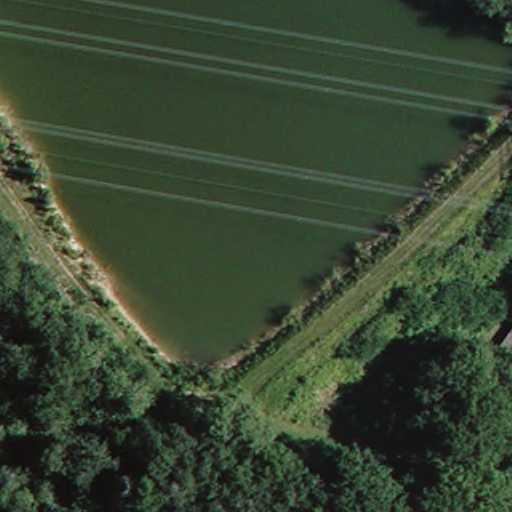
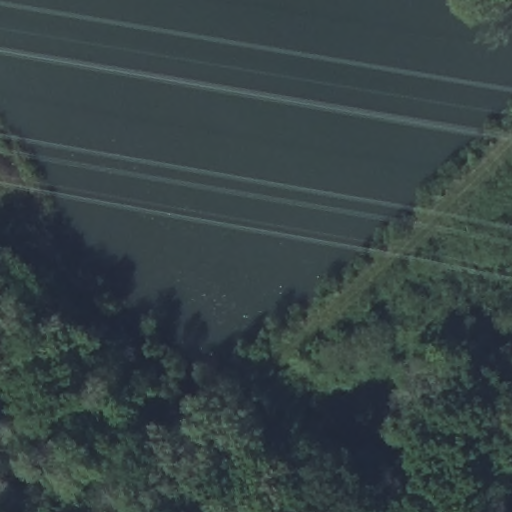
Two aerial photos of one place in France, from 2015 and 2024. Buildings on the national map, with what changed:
unchanged [(499,351),(512,332),(512,361),(512,362),(499,351)]

